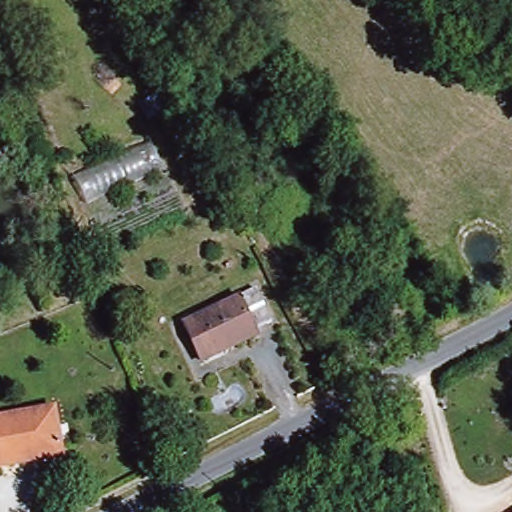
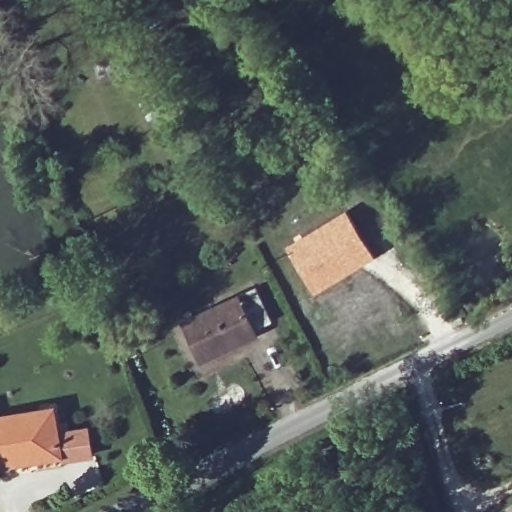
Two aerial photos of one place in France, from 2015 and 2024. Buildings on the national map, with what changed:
new [(346,209),(376,256),(314,294),(285,246),(346,209)]
unchanged [(197,349),(186,320),(253,290),(268,323),(252,330),(256,337),(224,351),(204,361),(197,349)]
unchanged [(0,466),(0,414),(52,403),(62,452),(0,466)]

